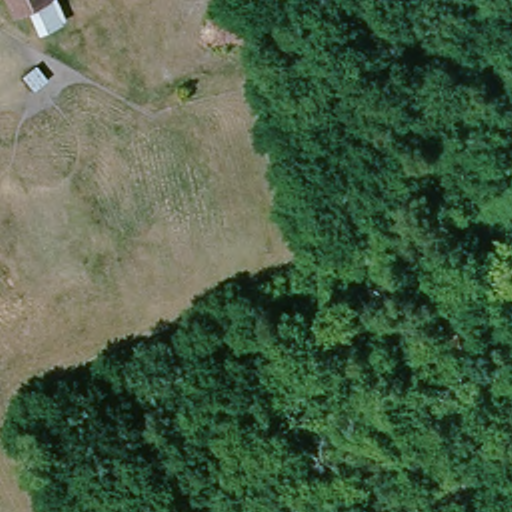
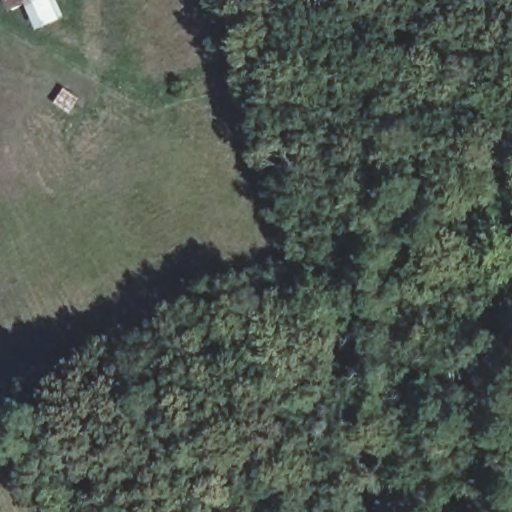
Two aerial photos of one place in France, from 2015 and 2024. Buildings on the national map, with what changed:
unchanged [(28,8),(13,15),(7,0),(57,0),(66,21),(38,36),(28,8)]

